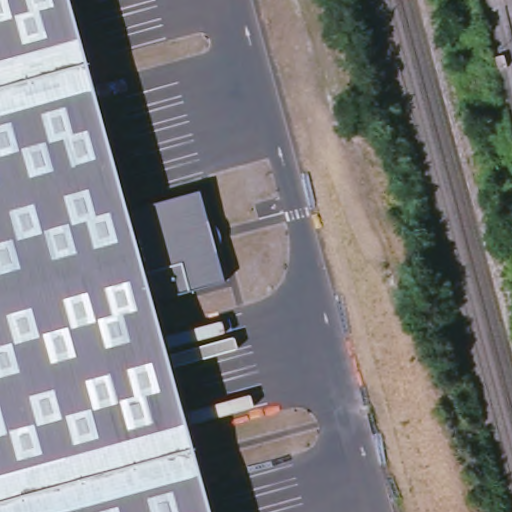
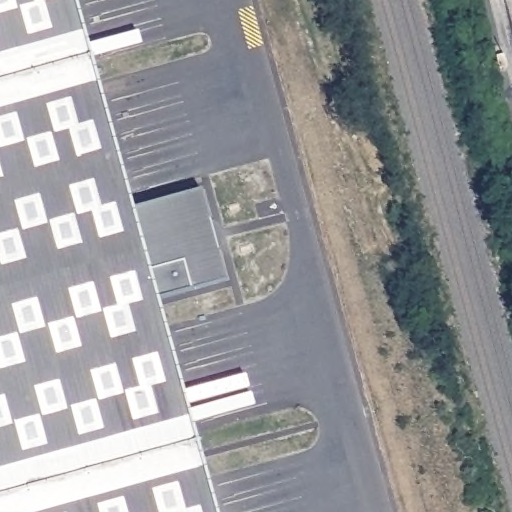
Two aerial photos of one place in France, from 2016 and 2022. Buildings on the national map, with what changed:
unchanged [(124,210),(196,190),(221,282),(149,301),(163,351),(207,512),(0,512),(0,0),(66,0),(124,210)]

